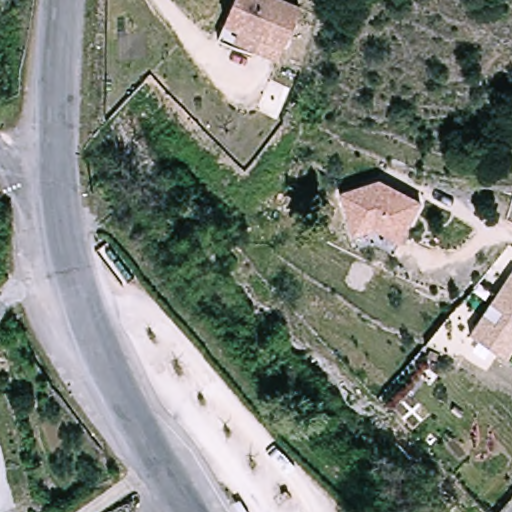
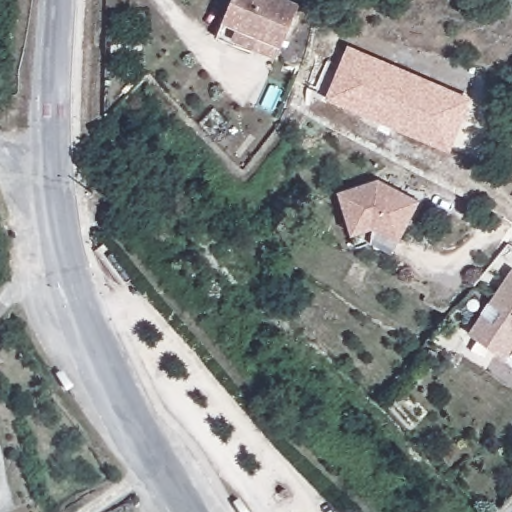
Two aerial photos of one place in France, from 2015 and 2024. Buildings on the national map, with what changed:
unchanged [(247,38),(243,46),(225,39),(240,0),(301,0),(307,2),(287,53),(247,38)]
new [(471,104),(451,150),(325,98),(349,49),(470,99),(471,104)]
unchanged [(381,179),(421,202),(392,254),(371,242),(356,246),(340,189),(381,179)]
unchanged [(496,349),(472,332),(486,312),(499,321),(506,310),(494,301),(512,276),(512,353),(509,359),(496,349)]

